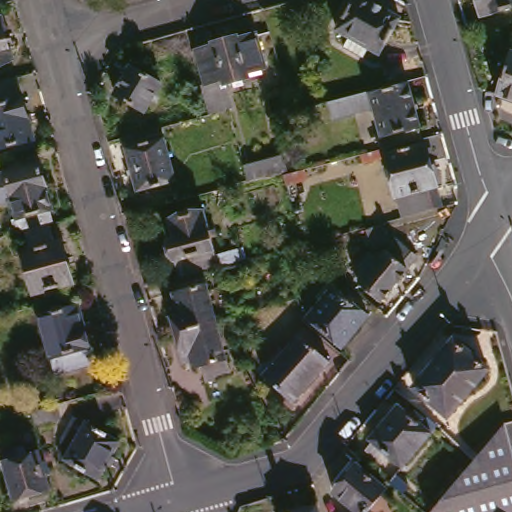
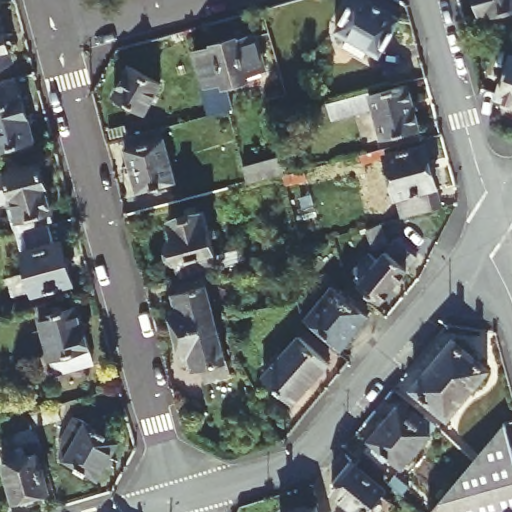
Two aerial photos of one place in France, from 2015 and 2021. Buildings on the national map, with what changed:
unchanged [(363,55),(358,64),(338,52),(343,43),(330,36),(351,0),(352,0),(394,24),(374,61),(363,55)]
unchanged [(469,0),(512,0),(512,13),(476,23),(469,0)]
unchanged [(0,60),(0,34),(7,58),(0,60)]
unchanged [(246,72),(248,79),(224,85),(231,109),(228,110),(207,116),(199,85),(203,84),(194,52),(213,47),(212,44),(236,37),(237,41),(255,36),(264,67),(246,72)]
unchanged [(501,82),(487,77),(496,52),(511,57),(512,53),(512,102),(496,96),(501,82)]
unchanged [(109,96),(124,67),(155,85),(139,112),(109,96)]
unchanged [(28,146),(27,147),(28,152),(5,159),(4,152),(0,154),(0,88),(10,86),(15,104),(18,105),(28,146)]
unchanged [(413,132),(416,144),(392,151),(389,139),(375,142),(368,115),(327,125),(322,107),(363,97),(364,99),(403,89),(414,132),(413,132)]
unchanged [(274,127),(271,117),(289,112),(292,122),(274,127)]
unchanged [(130,197),(118,154),(158,143),(169,187),(130,197)]
unchanged [(396,224),(384,182),(381,182),(379,174),(383,173),(381,164),(357,170),(354,160),(378,154),(379,154),(379,158),(418,148),(434,212),(396,224)]
unchanged [(247,183),(243,167),(281,157),(284,171),(285,173),(282,174),(247,183)]
unchanged [(49,213),(53,224),(48,226),(24,232),(14,235),(12,222),(18,220),(13,203),(0,206),(0,175),(39,165),(52,212),(49,213)]
unchanged [(282,175),(303,170),(306,180),(284,186),(282,175)]
unchanged [(197,262),(174,268),(164,229),(169,227),(164,210),(199,201),(204,222),(211,220),(212,226),(206,227),(211,246),(237,239),(240,251),(214,258),(197,262)]
unchanged [(56,288),(58,293),(49,296),(49,291),(33,295),(21,254),(29,252),(24,232),(48,226),(53,245),(61,243),(72,285),(56,288)]
unchanged [(355,245),(362,242),(369,240),(376,257),(368,261),(362,263),(355,245)]
unchanged [(347,299),(352,293),(343,286),(359,267),(368,275),(374,266),(384,255),(407,273),(397,285),(369,318),(347,299)]
unchanged [(169,323),(161,292),(168,291),(166,283),(173,282),(169,270),(174,268),(197,262),(210,312),(169,323)]
unchanged [(306,318),(332,287),(367,317),(341,347),(306,318)]
unchanged [(49,381),(31,312),(41,310),(44,319),(49,317),(48,313),(57,311),(58,316),(72,312),(88,370),(49,381)]
unchanged [(198,368),(194,357),(187,360),(184,353),(178,355),(169,323),(210,312),(223,361),(198,368)]
unchanged [(263,377),(298,337),(329,362),(293,404),(263,377)]
unchanged [(413,389),(453,342),(488,371),(446,418),(413,389)]
unchanged [(389,459),(382,467),(366,453),(373,446),(370,443),(399,408),(411,418),(414,414),(423,421),(419,425),(429,432),(399,467),(389,459)]
unchanged [(41,432),(37,417),(62,410),(66,425),(41,432)]
unchanged [(4,446),(0,431),(34,422),(39,436),(4,446)]
unchanged [(64,463),(66,443),(76,425),(85,426),(123,448),(101,486),(64,463)]
unchanged [(499,430),(512,476),(512,512),(430,512),(468,467),(499,430)]
unchanged [(9,506),(0,473),(0,458),(19,453),(21,462),(32,459),(43,496),(9,506)]
unchanged [(356,472),(384,495),(369,512),(349,512),(334,498),(356,472)]
unchanged [(311,512),(315,511),(315,512),(311,512)]

